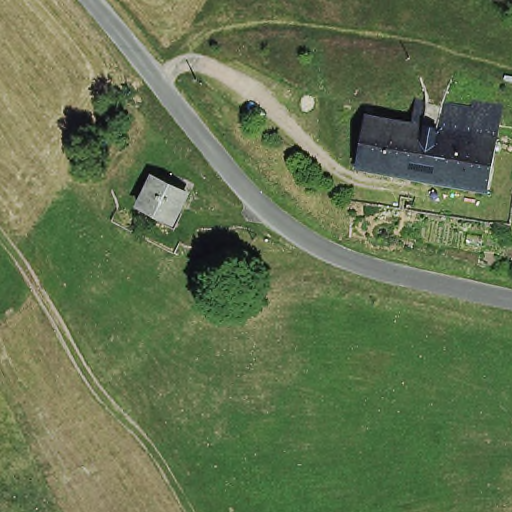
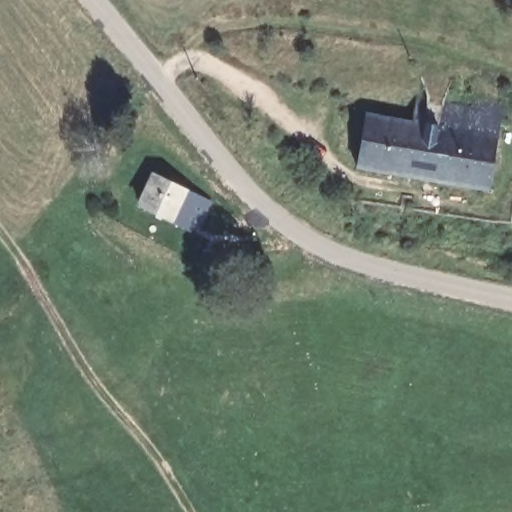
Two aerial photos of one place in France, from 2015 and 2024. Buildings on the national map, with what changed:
unchanged [(470,109),(472,100),(502,106),(496,137),(426,125),(410,123),(414,97),(470,109)]
unchanged [(355,167),(364,115),(410,123),(426,125),(417,179),(355,167)]
unchanged [(426,125),(496,137),(484,190),(417,179),(426,125)]
unchanged [(169,225),(134,210),(148,180),(161,185),(165,177),(178,184),(176,191),(181,194),(169,225)]

